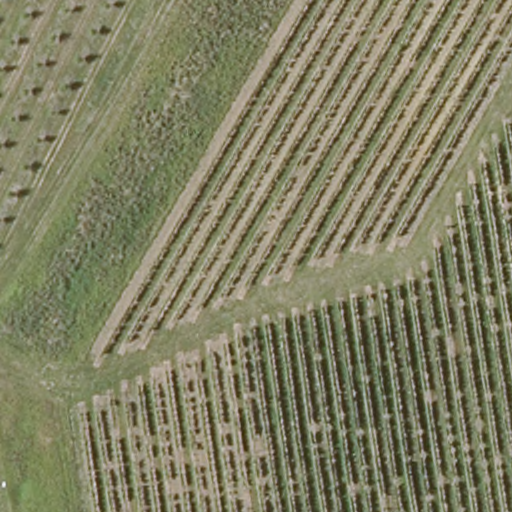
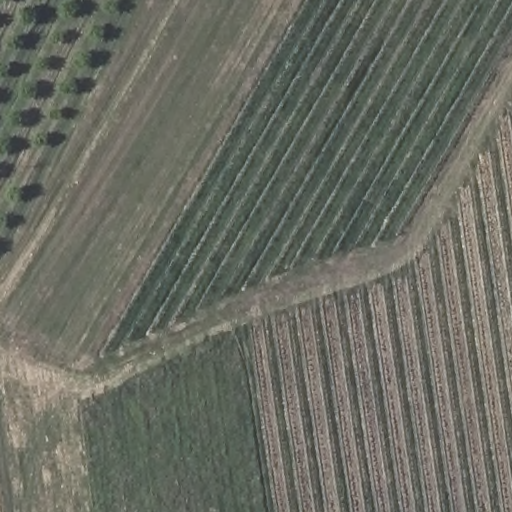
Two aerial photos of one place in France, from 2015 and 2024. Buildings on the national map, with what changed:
[]

